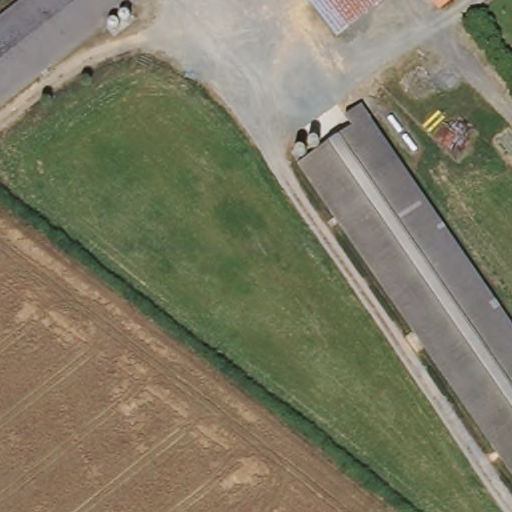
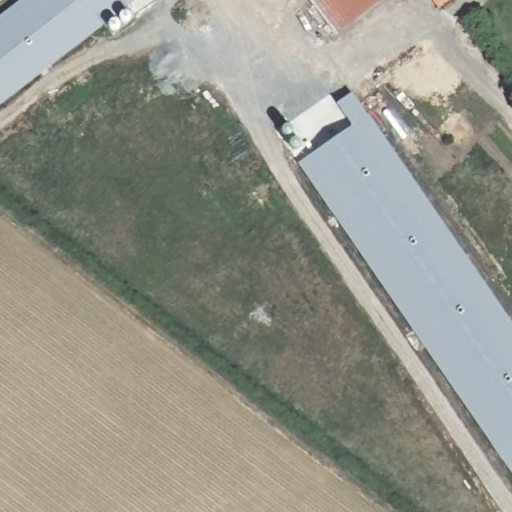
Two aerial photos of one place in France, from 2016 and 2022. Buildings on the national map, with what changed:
unchanged [(125,0),(6,97),(0,101),(0,13),(16,0),(125,0)]
unchanged [(314,0),(324,0),(319,6),(314,0)]
unchanged [(382,0),(340,33),(319,6),(324,0),(382,0)]
unchanged [(438,0),(454,0),(445,8),(438,0)]
unchanged [(512,313),(512,467),(304,166),(301,161),(293,149),(315,133),(323,143),(330,140),(354,124),(347,113),(366,103),(512,313)]

